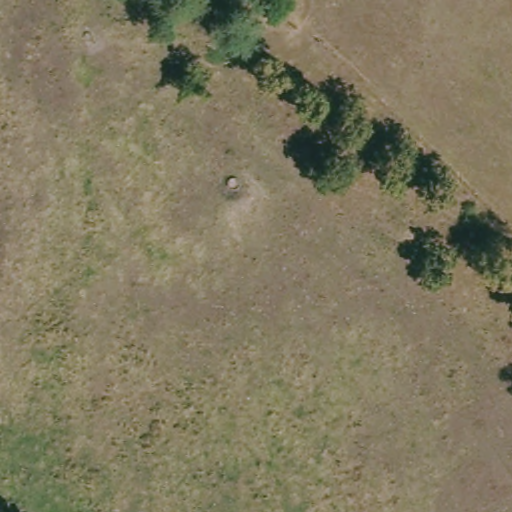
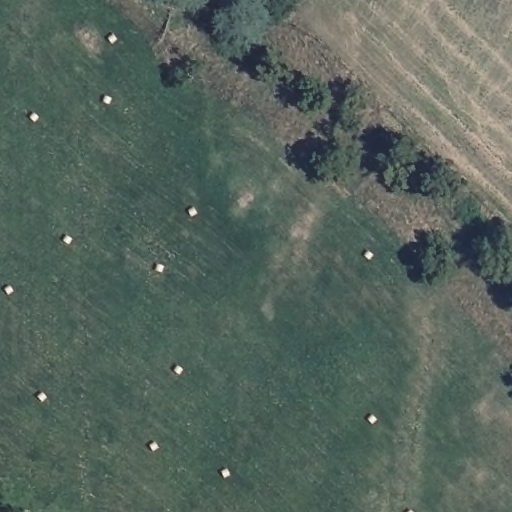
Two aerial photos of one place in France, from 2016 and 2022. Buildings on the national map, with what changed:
[]

